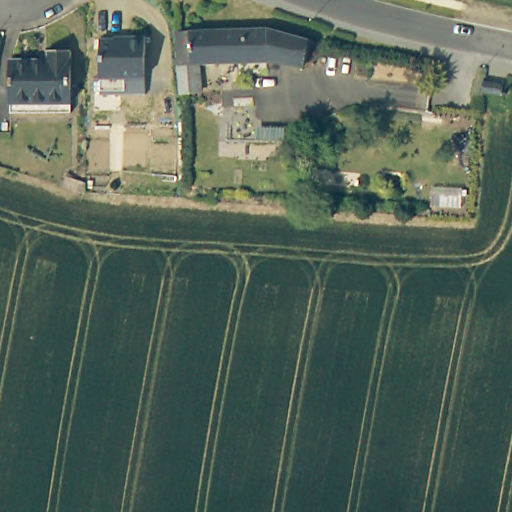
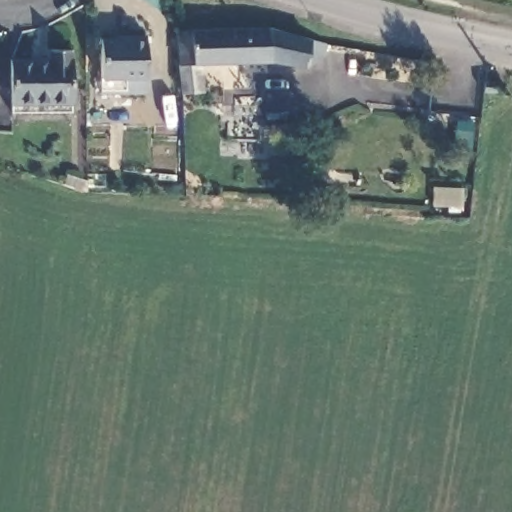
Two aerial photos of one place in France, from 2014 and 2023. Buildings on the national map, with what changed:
unchanged [(177,89),(175,64),(171,29),(257,27),(321,44),(320,58),(298,69),(265,63),(196,64),(197,89),(177,89)]
unchanged [(102,92),(101,79),(100,40),(126,40),(126,36),(146,36),(147,79),(126,79),(126,93),(102,92)]
unchanged [(12,56),(45,55),(45,45),(72,45),(74,108),(12,109),(12,56)]
unchanged [(72,176),(90,182),(88,193),(68,187),(72,176)]

